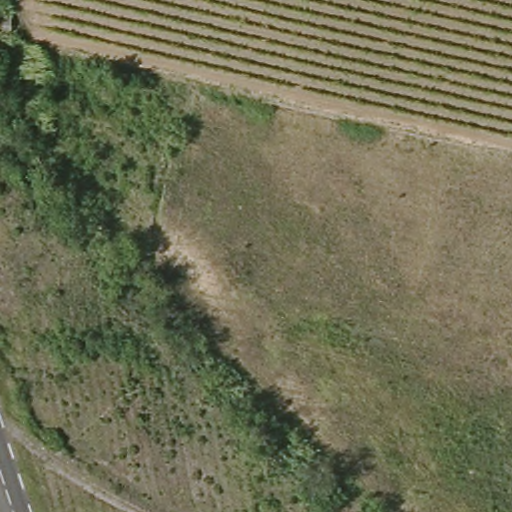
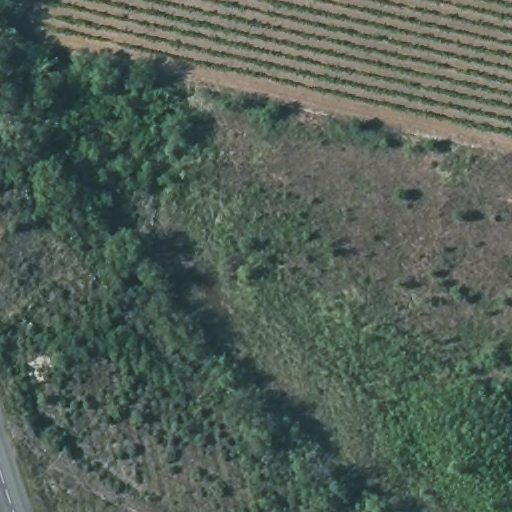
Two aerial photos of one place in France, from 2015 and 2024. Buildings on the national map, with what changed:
unchanged [(4,7),(16,7),(15,24),(1,22),(4,7)]

